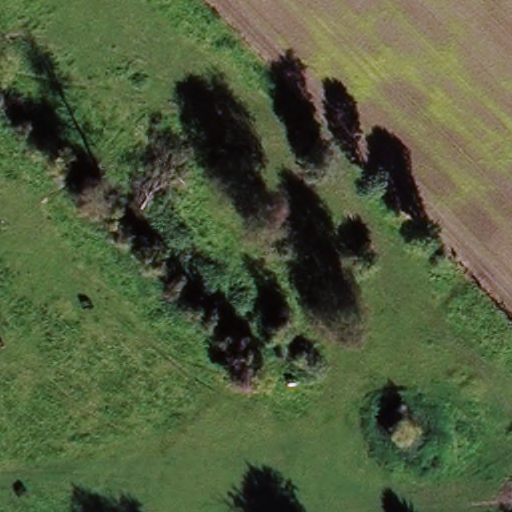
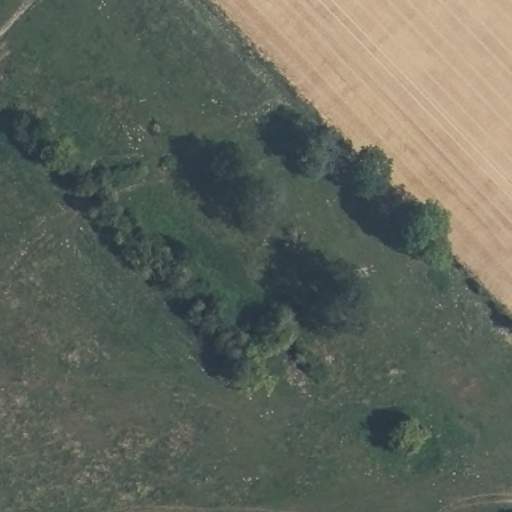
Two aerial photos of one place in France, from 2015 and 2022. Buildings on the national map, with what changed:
unchanged [(386,426),(402,411),(424,436),(407,451),(386,426)]

